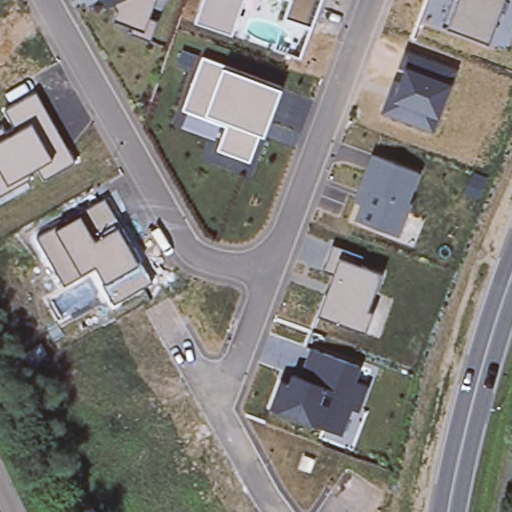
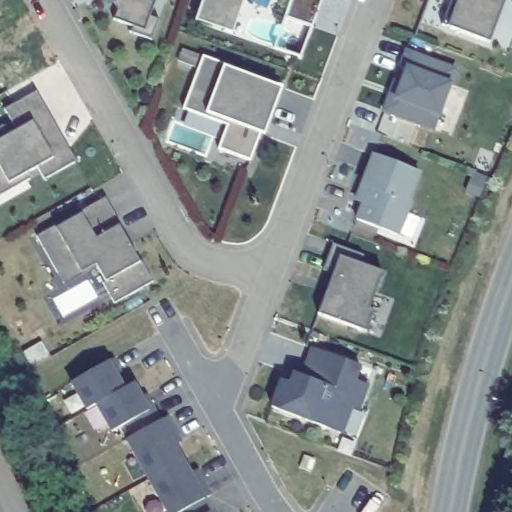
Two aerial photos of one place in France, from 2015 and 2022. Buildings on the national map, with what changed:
unchanged [(151,20),(156,22),(151,39),(129,32),(131,26),(114,20),(117,10),(113,3),(106,6),(103,0),(157,0),(151,20)]
unchanged [(231,34),(223,30),(226,22),(203,14),(208,0),(244,0),(231,34)]
unchanged [(311,27),(284,18),(289,3),(281,0),(322,0),(311,27)]
unchanged [(449,28),(458,0),(504,0),(489,42),(449,28)]
unchanged [(457,68),(433,131),(381,111),(405,49),(457,68)]
unchanged [(264,139),(259,136),(250,162),(219,151),(228,125),(183,109),(203,60),(226,70),(281,90),(264,139)]
unchanged [(74,160),(44,177),(38,166),(25,174),(28,179),(0,195),(0,128),(3,126),(8,134),(16,129),(5,109),(36,92),(74,160)]
unchanged [(410,202),(413,203),(399,236),(357,219),(363,204),(358,202),(377,153),(421,172),(410,202)]
unchanged [(115,301),(103,281),(93,267),(83,273),(64,283),(37,239),(57,228),(81,215),(104,204),(118,228),(139,265),(151,283),(115,301)]
unchanged [(369,311),(374,314),(366,335),(317,316),(338,254),(383,273),(369,311)]
unchanged [(359,415),(350,412),(342,435),(311,424),(269,410),(279,381),(289,385),(294,373),(301,376),(311,348),(361,368),(356,382),(368,387),(359,415)]
new [(114,362),(122,375),(118,378),(125,392),(98,408),(88,413),(73,385),(110,364),(114,362)]
new [(125,392),(135,386),(143,400),(148,398),(162,424),(136,438),(129,426),(114,435),(98,408),(125,392)]
new [(162,424),(168,420),(176,434),(183,445),(176,449),(184,463),(151,482),(128,443),(136,438),(162,424)]
new [(198,473),(206,485),(213,498),(206,502),(189,512),(167,512),(151,482),(184,463),(192,477),(198,473)]
new [(212,512),(189,512),(206,502),(212,512)]

